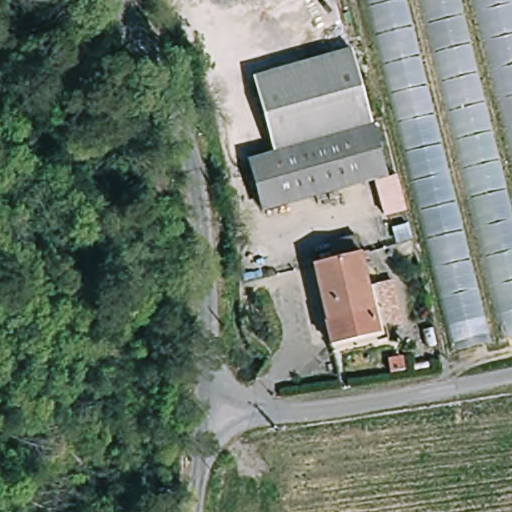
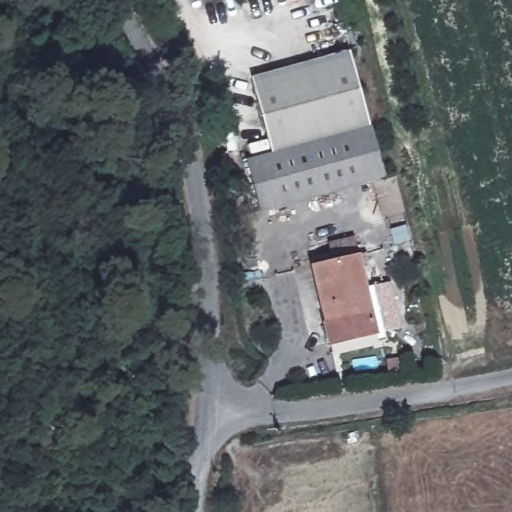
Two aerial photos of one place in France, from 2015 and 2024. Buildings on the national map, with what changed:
demolished [(512,339),(454,353),(367,0),(512,0),(512,339)]
unchanged [(272,151),(252,76),(347,49),(369,127),(272,151)]
unchanged [(248,157),(375,126),(389,180),(262,211),(248,157)]
unchanged [(320,262),(361,252),(381,333),(383,341),(341,351),(340,344),(320,262)]

